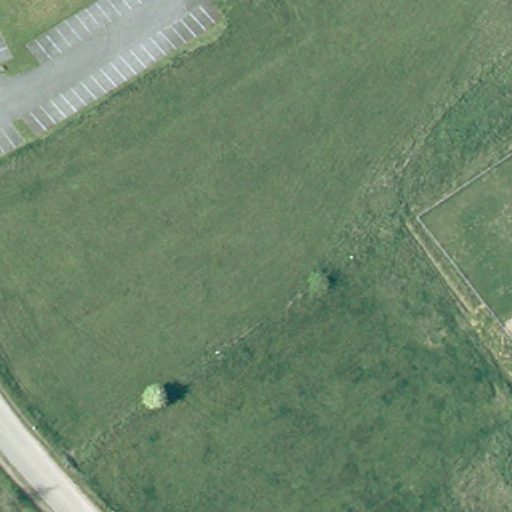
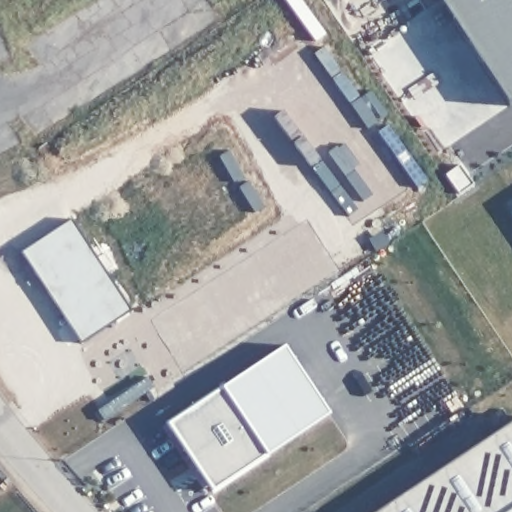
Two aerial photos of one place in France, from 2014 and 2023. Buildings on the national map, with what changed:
new [(510,106),(440,0),(512,0),(512,105),(510,106)]
new [(73,220),(133,312),(82,346),(22,253),(73,220)]
new [(221,386),(285,344),(331,415),(270,455),(272,458),(213,496),(165,425),(221,386)]
new [(376,512),(512,421),(512,512),(376,512)]

